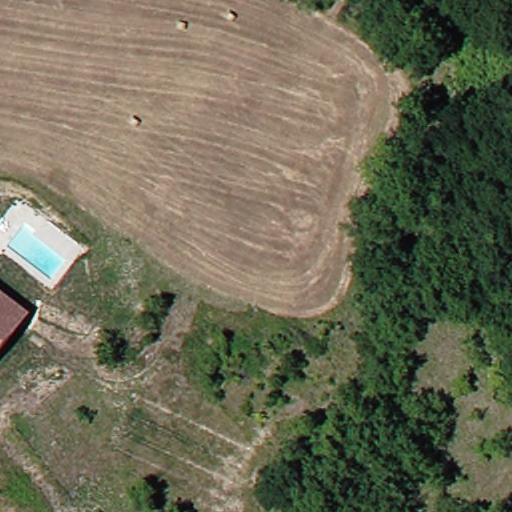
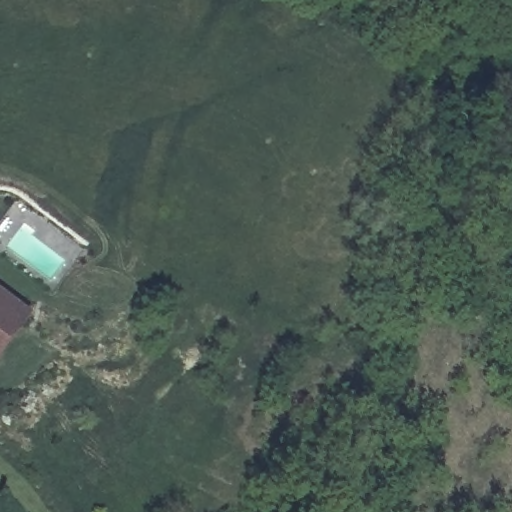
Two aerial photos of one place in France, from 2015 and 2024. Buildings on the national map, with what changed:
unchanged [(22,318),(14,330),(7,326),(0,321),(0,302),(22,318)]
unchanged [(7,326),(0,335),(0,321),(7,326)]

